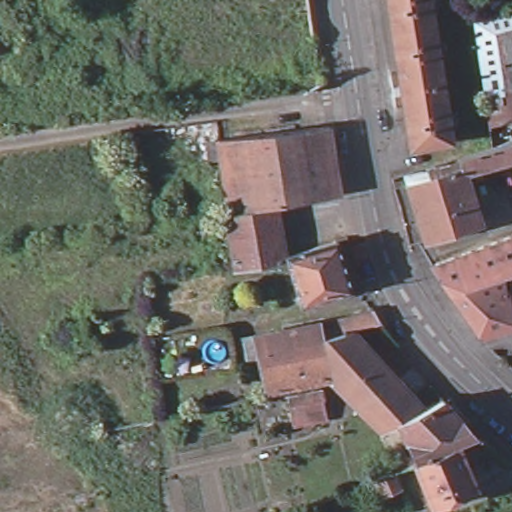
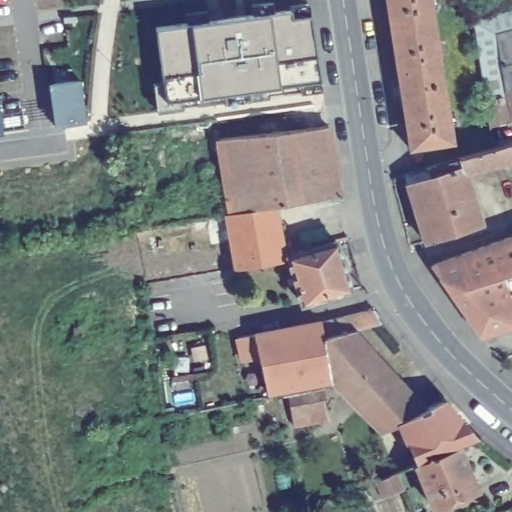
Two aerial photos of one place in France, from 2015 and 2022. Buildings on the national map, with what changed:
new [(309,14),(320,79),(321,89),(301,91),(300,81),(278,82),(278,84),(268,85),(269,97),(223,102),(222,92),(198,95),(183,97),(183,107),(157,111),(153,80),(163,77),(157,27),(190,22),(186,11),(207,8),(209,19),(252,13),(250,3),(272,0),(273,10),(288,8),(288,3),(308,1),(309,14)]
unchanged [(445,70),(457,140),(410,147),(397,70),(385,0),(434,0),(445,70)]
unchanged [(512,7),(512,119),(492,124),(483,70),(475,18),(512,7)]
new [(87,121),(55,126),(49,83),(81,79),(87,121)]
new [(0,134),(0,121),(2,134),(0,134)]
unchanged [(345,193),(285,198),(288,256),(233,269),(215,135),(335,124),(345,193)]
unchanged [(512,134),(512,162),(473,173),(487,226),(426,244),(405,182),(512,134)]
new [(152,170),(159,225),(140,229),(132,173),(152,170)]
unchanged [(481,337),(413,270),(512,229),(512,324),(481,337)]
unchanged [(306,298),(293,256),(340,239),(354,287),(306,298)]
unchanged [(384,437),(335,379),(265,392),(252,332),(323,318),(325,331),(358,326),(425,401),(450,398),(482,437),(462,444),(483,492),(440,512),(436,512),(402,425),(384,437)]
unchanged [(293,428),(288,406),(322,399),(328,422),(293,428)]

